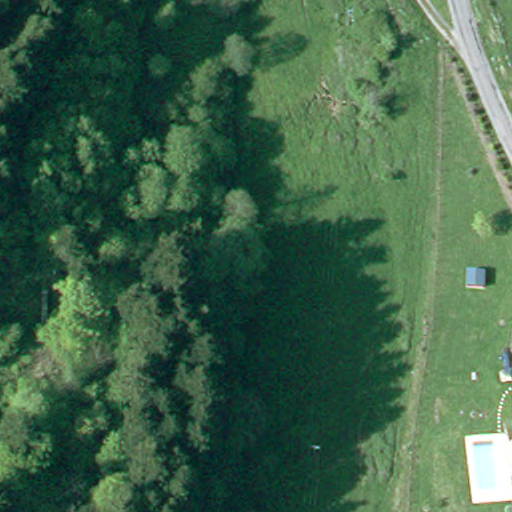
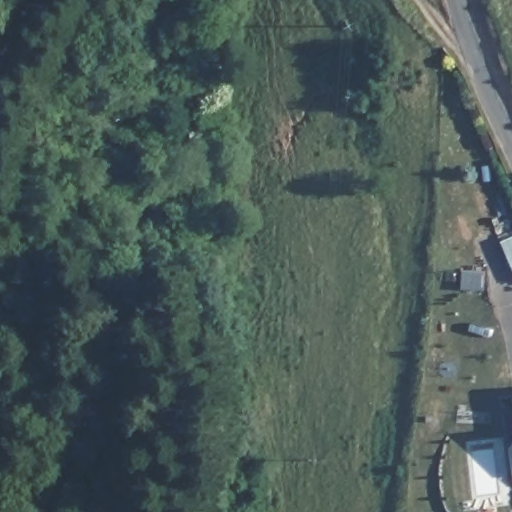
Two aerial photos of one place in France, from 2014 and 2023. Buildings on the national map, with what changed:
unchanged [(512,404),(511,400),(510,384),(512,384),(512,404)]
unchanged [(512,428),(512,437),(511,430),(512,428)]

